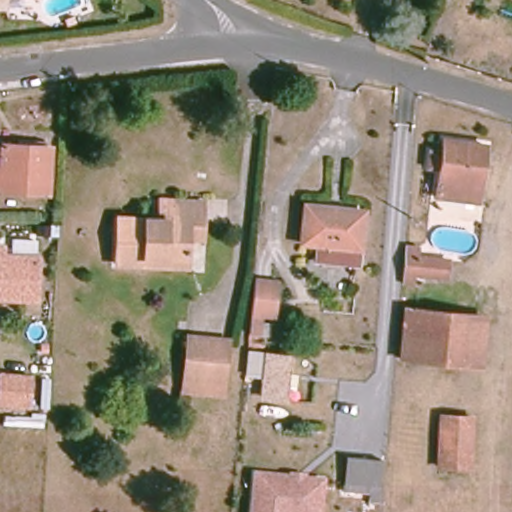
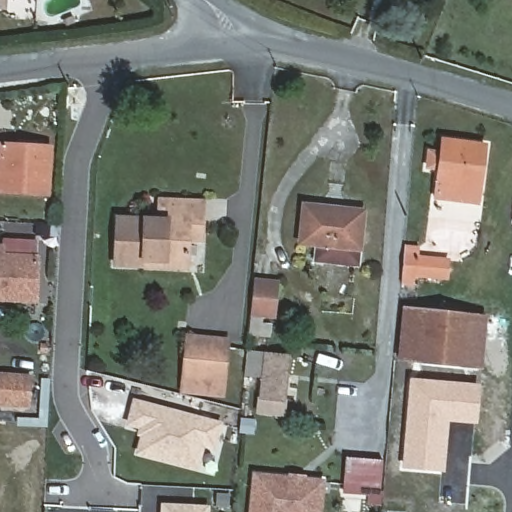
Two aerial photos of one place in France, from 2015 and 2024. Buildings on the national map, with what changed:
unchanged [(0,190),(0,151),(0,143),(15,144),(15,139),(43,140),(43,145),(47,146),(46,171),(49,171),(48,193),(47,193),(0,190)]
unchanged [(439,169),(427,167),(430,150),(441,151),(443,139),(485,144),(476,203),(436,197),(439,169)]
unchanged [(157,266),(116,264),(118,217),(160,219),(161,199),(203,201),(202,225),(201,239),(186,238),(185,259),(184,267),(157,266)]
unchanged [(363,210),(359,263),(317,259),(318,244),(299,242),(303,203),(363,210)]
unchanged [(450,277),(417,273),(416,282),(406,281),(408,254),(409,245),(422,246),(421,256),(452,259),(450,277)]
unchanged [(8,248),(8,256),(42,258),(40,277),(35,277),(33,295),(11,294),(12,275),(0,275),(0,248),(8,248)]
unchanged [(279,285),(276,322),(265,322),(264,339),(249,339),(252,321),(255,282),(279,285)]
unchanged [(13,296),(12,304),(5,304),(6,296),(13,296)]
unchanged [(481,366),(462,364),(400,359),(406,309),(467,315),(486,316),(481,366)]
unchanged [(228,342),(223,395),(181,391),(188,338),(228,342)]
unchanged [(266,349),(287,352),(281,394),(261,392),(266,349)]
unchanged [(28,409),(0,407),(0,372),(31,374),(28,409)]
new [(445,471),(401,467),(409,381),(481,384),(477,424),(449,422),(445,471)]
unchanged [(242,394),(251,394),(248,418),(240,417),(242,394)]
new [(223,422),(216,447),(205,444),(198,470),(135,453),(144,428),(125,425),(133,397),(223,422)]
unchanged [(262,402),(280,403),(278,418),(260,417),(262,402)]
demolished [(472,418),(469,468),(437,467),(441,416),(472,418)]
unchanged [(383,477),(381,493),(345,490),(348,456),(384,459),(383,477)]
unchanged [(251,512),(254,475),(290,479),(302,480),(322,482),(319,512),(251,512)]
new [(209,505),(209,512),(160,512),(161,503),(209,505)]

